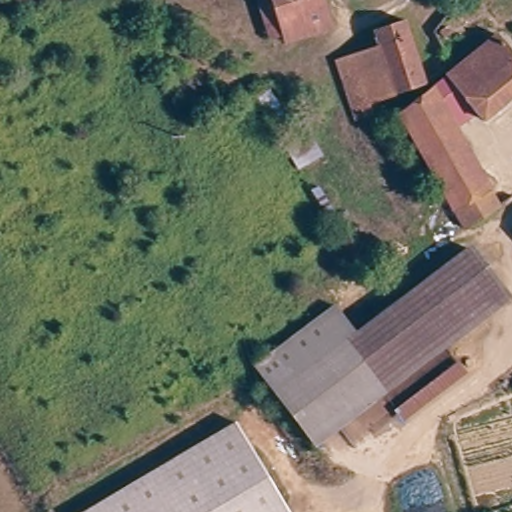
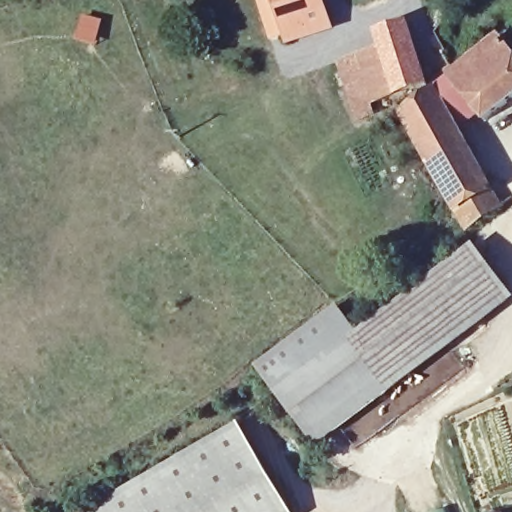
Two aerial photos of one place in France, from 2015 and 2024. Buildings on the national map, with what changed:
unchanged [(320,0),(325,21),(286,34),(284,29),(268,33),(261,0),(320,0)]
unchanged [(374,40),(369,27),(403,16),(422,72),(390,83),(395,95),(388,98),(364,44),(374,40)]
unchanged [(459,204),(398,102),(499,25),(512,43),(512,92),(483,114),(480,109),(461,123),(496,184),(505,199),(470,222),(459,204)]
unchanged [(388,98),(353,111),(332,58),(364,44),(388,98)]
unchanged [(265,377),(255,363),(329,311),(339,326),(348,340),(403,302),(454,266),(476,250),(505,292),(430,344),(304,433),(265,377)]
unchanged [(408,416),(400,405),(440,378),(463,363),(472,372),(444,391),(408,416)]
unchanged [(290,510),(288,512),(108,512),(239,429),(290,510)]

